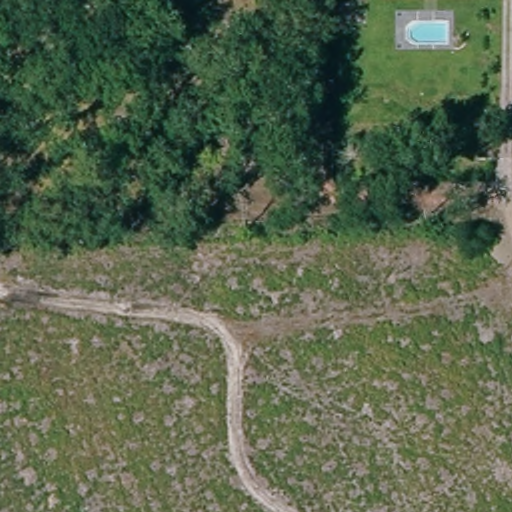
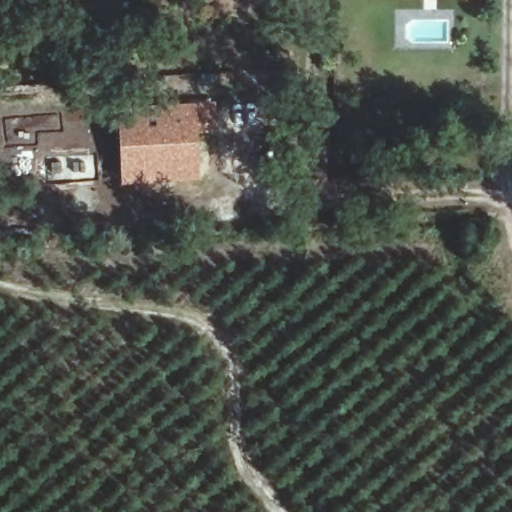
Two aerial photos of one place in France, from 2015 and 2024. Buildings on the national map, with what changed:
new [(211,103),(212,122),(192,124),(193,175),(141,178),(139,137),(120,139),(119,109),(211,103)]

